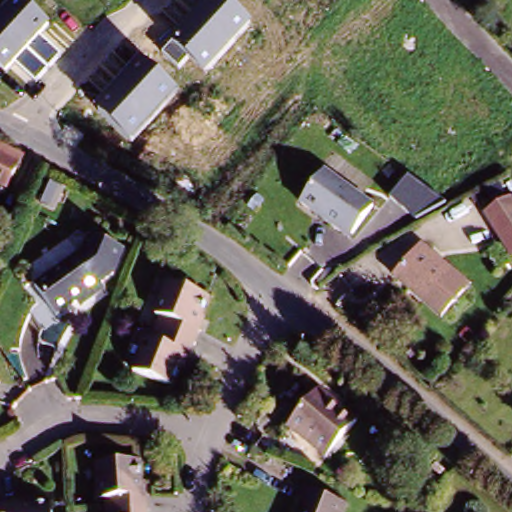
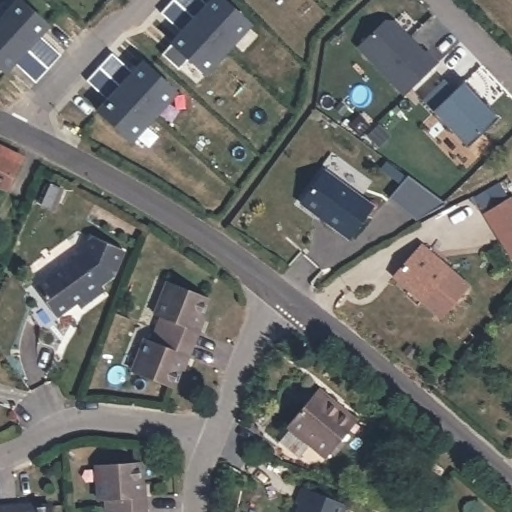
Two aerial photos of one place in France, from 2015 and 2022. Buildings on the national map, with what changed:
unchanged [(52,25),(40,38),(60,52),(35,79),(15,63),(6,72),(0,66),(0,17),(15,0),(24,0),(52,25)]
unchanged [(254,26),(209,75),(190,55),(180,68),(162,53),(174,40),(212,0),(224,0),(254,26)]
new [(382,17),(389,18),(420,51),(423,49),(434,61),(400,92),(355,42),(382,17)]
unchanged [(181,92),(136,143),(97,110),(144,59),(181,92)]
new [(435,110),(424,99),(446,79),(456,90),(465,82),(498,118),(468,146),(435,110)]
unchanged [(4,191),(0,190),(0,151),(20,160),(4,191)]
unchanged [(365,207),(341,240),(292,204),(315,171),(365,207)]
unchanged [(409,173),(449,202),(417,219),(392,196),(409,173)]
unchanged [(506,201),(512,211),(512,262),(510,263),(481,216),(506,201)]
unchanged [(84,256),(91,240),(126,256),(113,280),(101,289),(57,321),(35,291),(80,259),(84,256)]
unchanged [(423,247),(469,291),(438,323),(393,278),(423,247)]
unchanged [(152,318),(147,316),(160,283),(201,300),(193,318),(188,332),(193,335),(189,346),(147,330),(152,318)]
unchanged [(164,386),(126,371),(140,338),(143,340),(147,330),(189,346),(184,358),(178,356),(173,369),(164,386)]
unchanged [(313,395),(332,414),(336,410),(352,427),(318,461),(282,426),(313,395)]
unchanged [(146,498),(146,512),(102,512),(102,500),(94,501),(94,466),(138,463),(139,484),(140,498),(146,498)]
unchanged [(340,512),(295,512),(297,506),(293,504),(299,489),(342,508),(340,512)]
unchanged [(54,512),(3,512),(3,505),(17,504),(17,510),(32,509),(54,507),(54,512)]
unchanged [(3,505),(3,512),(0,512),(0,506),(3,505)]

